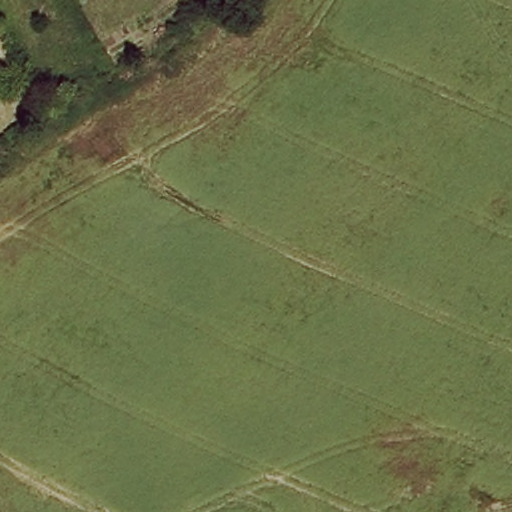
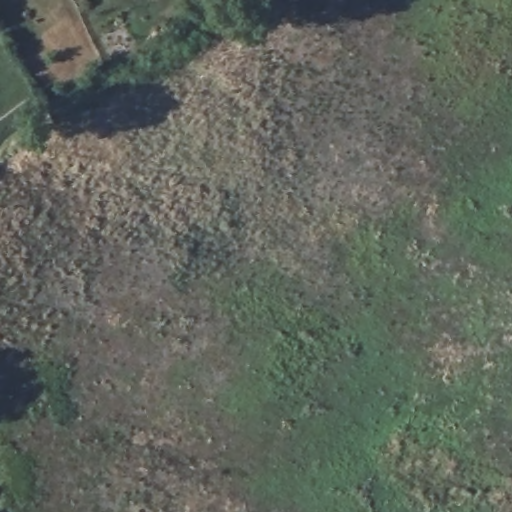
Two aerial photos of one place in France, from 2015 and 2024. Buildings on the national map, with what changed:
[]

